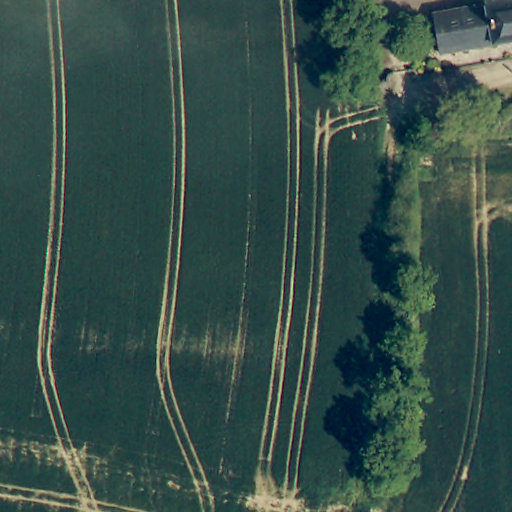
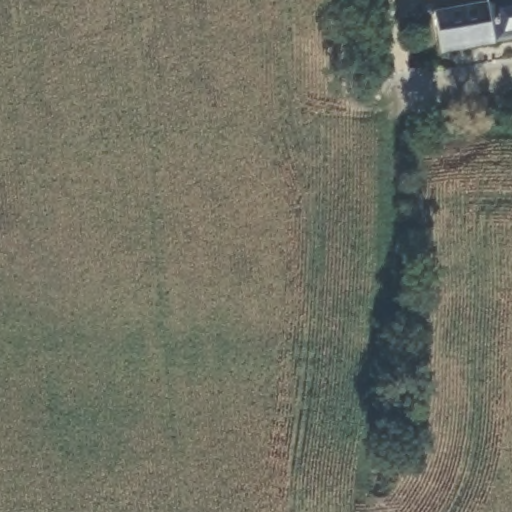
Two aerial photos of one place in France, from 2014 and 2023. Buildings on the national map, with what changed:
unchanged [(434,14),(484,5),(483,0),(512,0),(512,40),(439,51),(434,14)]
unchanged [(373,100),(368,104),(362,104),(357,100),(355,94),(357,87),(364,84),(371,85),(375,89),(376,95),(373,100)]

